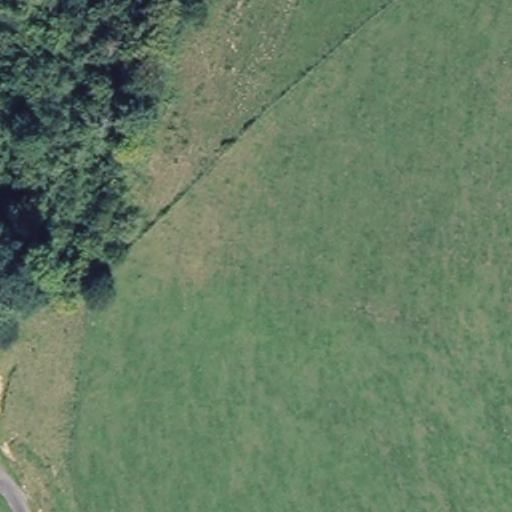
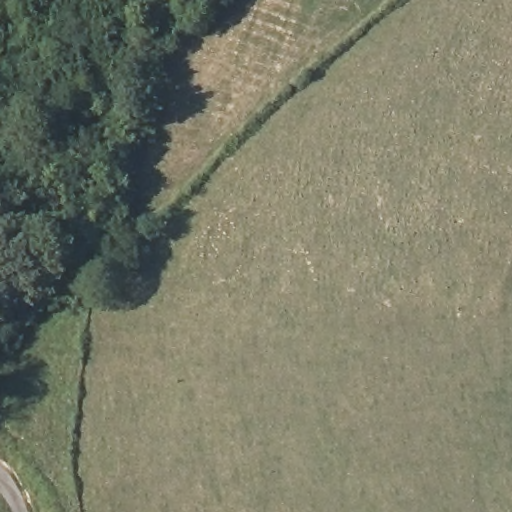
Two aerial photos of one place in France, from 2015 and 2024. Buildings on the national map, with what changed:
[]

